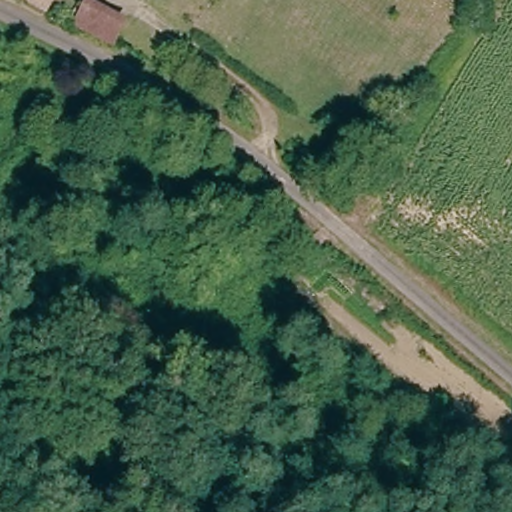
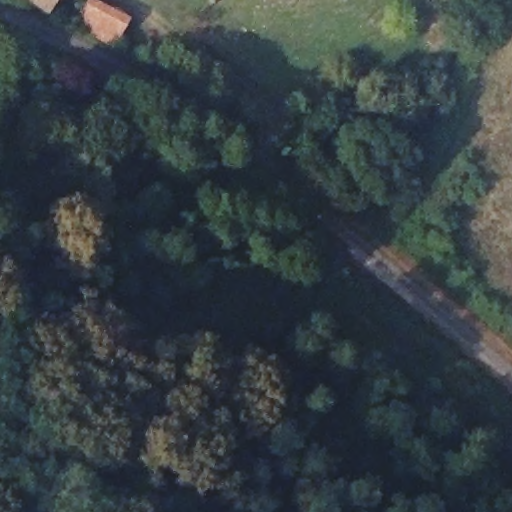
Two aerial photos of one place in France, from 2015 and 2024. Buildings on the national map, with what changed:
unchanged [(54,0),(47,11),(32,0),(54,0)]
unchanged [(77,26),(90,0),(96,0),(133,16),(119,43),(77,26)]

